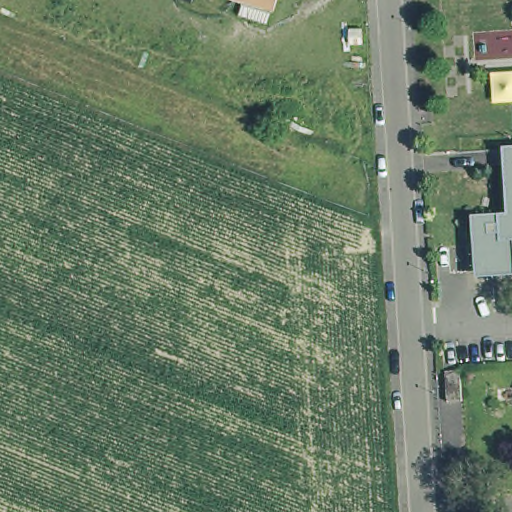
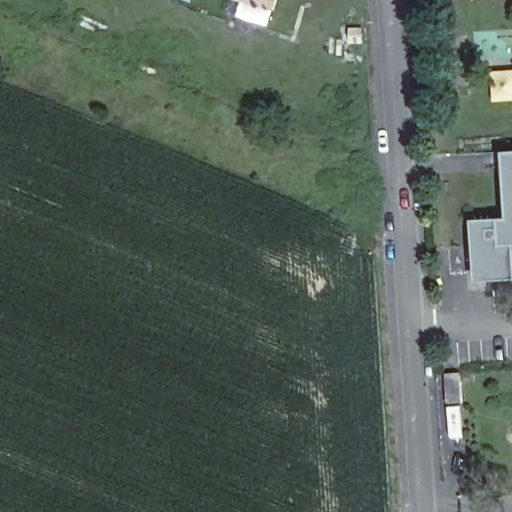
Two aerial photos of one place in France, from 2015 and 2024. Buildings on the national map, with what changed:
unchanged [(479,279),(477,244),(477,217),(511,214),(508,148),(512,148),(512,277),(493,279),(479,279)]

